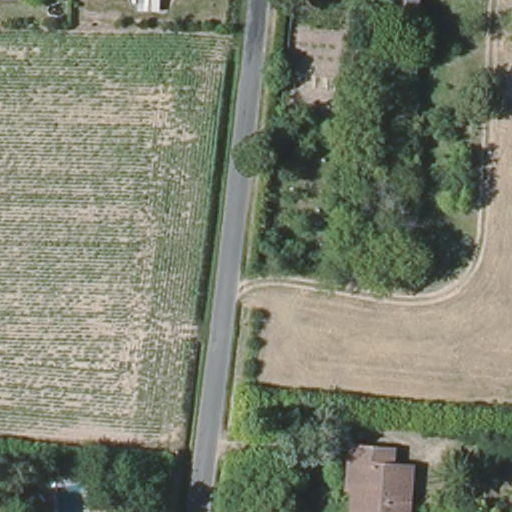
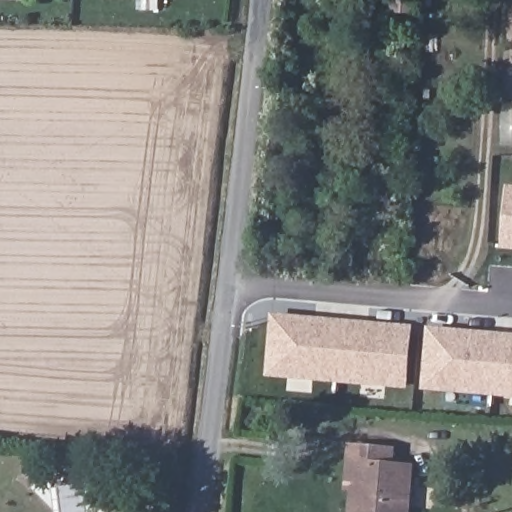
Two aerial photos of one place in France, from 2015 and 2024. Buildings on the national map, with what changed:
new [(500,249),(505,186),(512,187),(512,250),(500,249)]
new [(407,389),(265,377),(270,315),(412,326),(407,389)]
new [(420,391),(426,327),(512,334),(512,398),(420,391)]
unchanged [(510,443),(484,442),(485,426),(511,428),(510,443)]
unchanged [(347,490),(349,465),(350,450),(392,453),(391,470),(397,471),(410,472),(408,491),(407,512),(351,512),(352,491),(347,490)]

